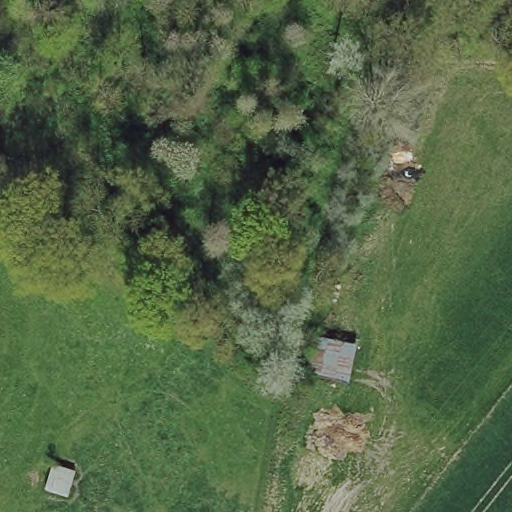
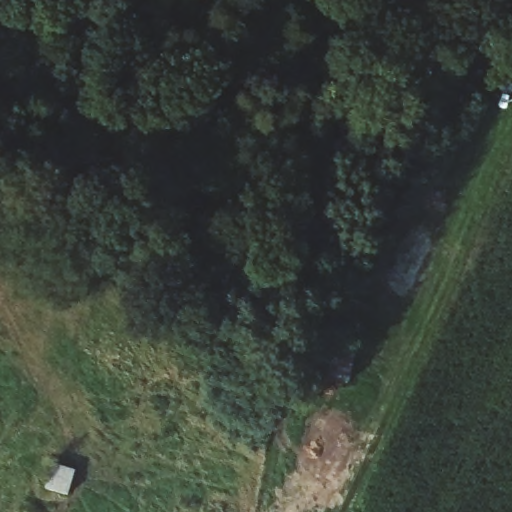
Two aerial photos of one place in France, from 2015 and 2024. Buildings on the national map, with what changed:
unchanged [(329,377),(311,374),(317,336),(351,342),(345,380),(329,377)]
unchanged [(42,492),(47,462),(72,467),(66,495),(42,492)]

